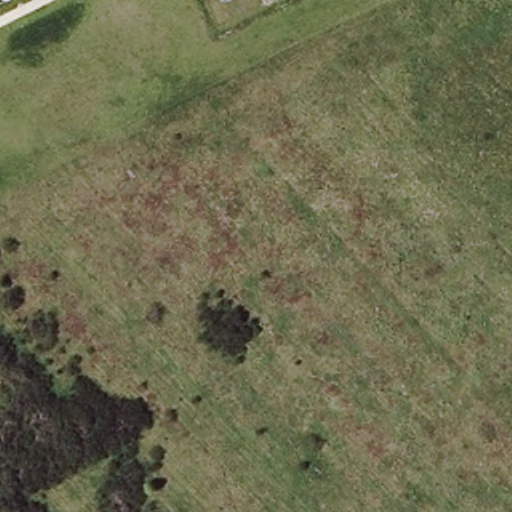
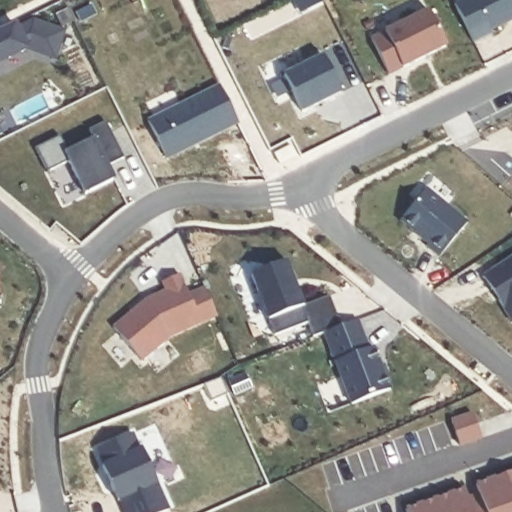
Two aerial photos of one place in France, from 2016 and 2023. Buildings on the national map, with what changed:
new [(490,31),(491,35),(475,43),(455,4),(463,0),(512,0),(512,20),(490,31)]
new [(429,10),(446,46),(389,75),(371,39),(429,10)]
new [(0,31),(15,24),(17,29),(33,21),(64,31),(55,58),(27,49),(0,62),(0,31)]
new [(323,56),(341,92),(302,112),(284,75),(323,56)]
new [(167,159),(148,120),(220,85),(240,122),(167,159)]
new [(60,135),(68,151),(94,138),(90,130),(106,121),(125,158),(109,165),(115,179),(85,195),(69,161),(47,171),(36,148),(60,135)]
new [(291,145),(296,155),(280,164),(275,154),(291,145)]
new [(400,220),(427,189),(468,222),(440,256),(426,245),(428,244),(400,220)]
new [(511,323),(481,275),(512,255),(512,323),(511,323)]
new [(341,326),(314,337),(308,322),(275,335),(251,274),(286,260),(303,305),(330,295),(341,326)]
new [(0,263),(1,263),(0,271),(0,263)]
new [(217,315),(170,336),(141,360),(113,327),(147,299),(166,290),(162,282),(180,274),(190,294),(205,287),(217,315)]
new [(350,405),(325,332),(341,326),(341,324),(356,319),(367,348),(373,346),(388,388),(350,405)]
new [(163,512),(125,512),(120,500),(118,501),(103,466),(105,465),(97,448),(132,433),(140,450),(142,448),(169,510),(163,512)]
new [(486,512),(476,485),(512,472),(512,512),(486,512)]
new [(473,512),(407,512),(406,510),(465,489),(473,512)]

